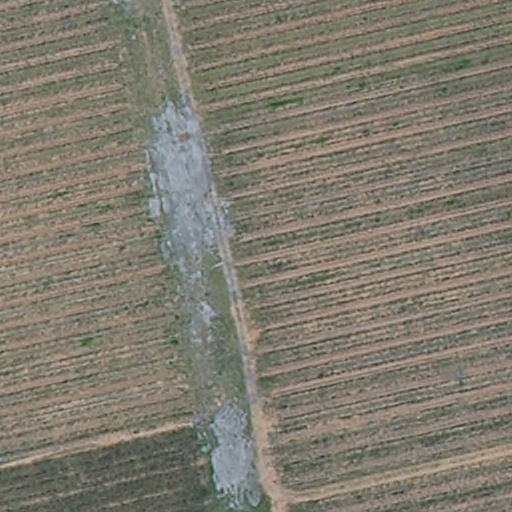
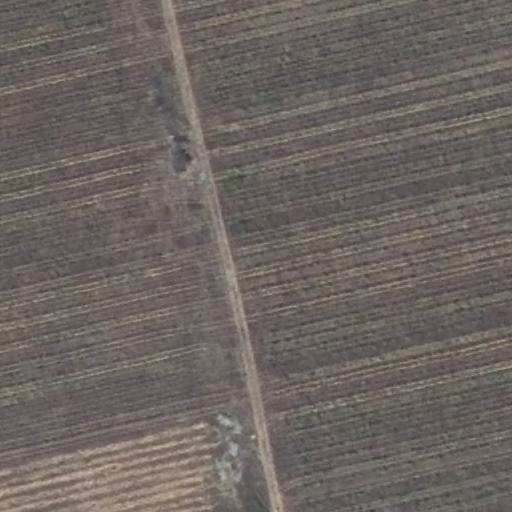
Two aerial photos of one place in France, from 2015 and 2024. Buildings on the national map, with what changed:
[]

